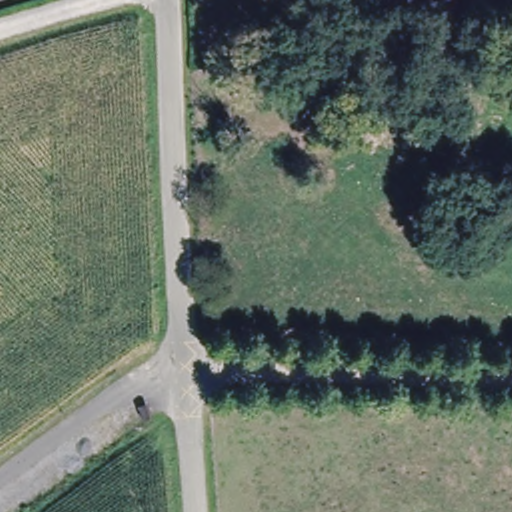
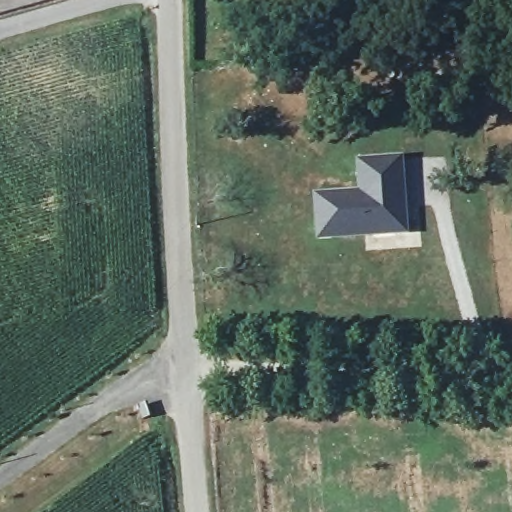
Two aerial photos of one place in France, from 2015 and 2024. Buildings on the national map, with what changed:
new [(395,159),(405,158),(407,189),(409,231),(322,235),(320,194),(365,191),(363,160),(395,159)]

